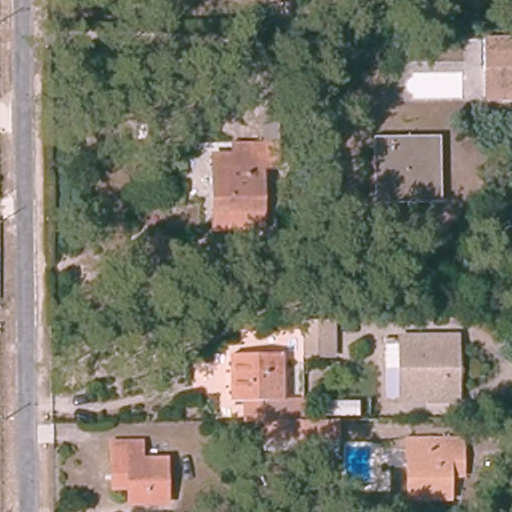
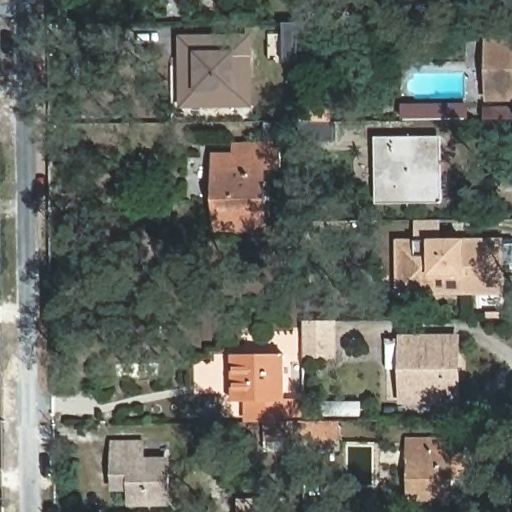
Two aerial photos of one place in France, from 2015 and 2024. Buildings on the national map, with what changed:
new [(253,34),(254,108),(177,108),(176,35),(253,34)]
unchanged [(483,40),(512,40),(512,100),(489,100),(483,100),(483,70),(483,40)]
new [(408,105),(468,104),(468,119),(408,120),(408,105)]
new [(512,124),(488,124),(487,106),(512,106),(512,124)]
new [(339,121),(339,141),(305,142),(304,122),(339,121)]
unchanged [(437,197),(376,198),(376,138),(437,137),(437,197)]
unchanged [(211,221),(210,211),(211,155),(228,155),(228,140),(251,140),(276,140),(276,153),(276,165),(262,165),(263,210),(263,220),(263,226),(211,227),(211,221)]
new [(503,239),(504,291),(398,293),(397,240),(503,239)]
unchanged [(341,359),(309,359),(309,324),(341,323),(341,359)]
unchanged [(401,408),(402,377),(388,377),(388,345),(460,345),(460,362),(460,387),(460,409),(401,408)]
unchanged [(286,405),(236,405),(234,356),(284,355),(286,405)]
unchanged [(271,441),(270,425),(305,424),(339,423),(339,442),(305,441),(305,451),(271,451),(271,441)]
unchanged [(410,502),(410,458),(407,459),(407,439),(450,439),(451,456),(465,456),(465,476),(451,476),(451,502),(410,502)]
unchanged [(113,463),(113,444),(142,443),(143,460),(167,460),(167,503),(131,503),(131,489),(113,488),(113,463)]

